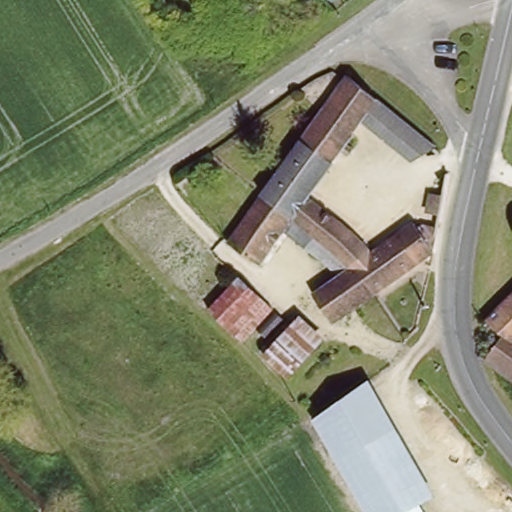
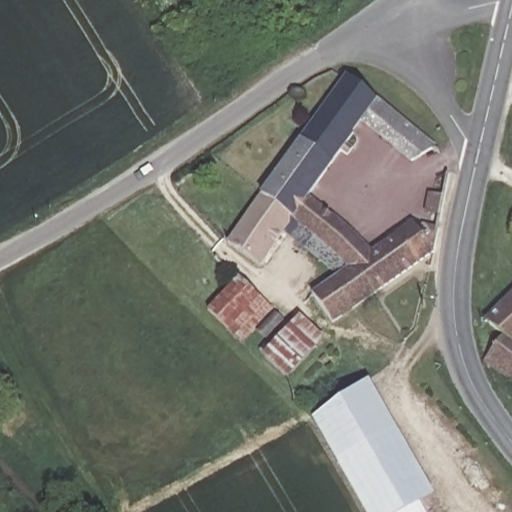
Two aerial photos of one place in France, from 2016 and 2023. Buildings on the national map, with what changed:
unchanged [(344,78),(433,144),(419,155),(366,115),(346,147),(353,151),(349,158),(341,153),(309,198),(349,230),(370,255),(411,224),(431,249),(371,293),(346,259),(263,195),(265,191),(243,176),(263,149),(284,164),(343,81),(344,78)]
unchanged [(346,259),(371,293),(331,324),(305,290),(318,281),(325,288),(337,279),(285,233),(261,265),(229,245),(240,229),(263,195),(346,259)]
unchanged [(269,302),(240,339),(217,321),(248,285),(269,302)]
unchanged [(504,334),(502,332),(489,319),(512,297),(512,375),(488,358),(504,334)]
unchanged [(326,340),(286,377),(256,354),(299,319),(326,340)]
unchanged [(369,388),(434,499),(425,503),(430,512),(365,512),(311,424),(369,388)]

